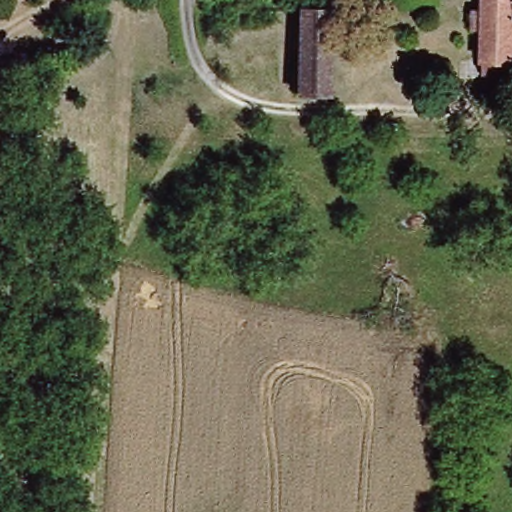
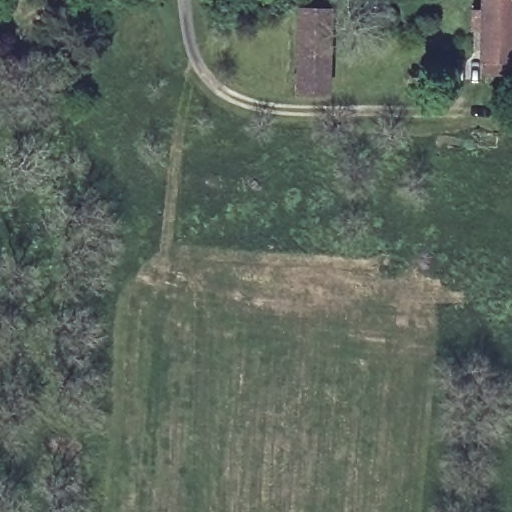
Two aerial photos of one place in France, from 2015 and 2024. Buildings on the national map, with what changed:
unchanged [(483,0),(512,0),(512,63),(482,63),(483,0)]
unchanged [(302,8),(339,8),(339,93),(301,93),(302,8)]
unchanged [(482,63),(512,63),(512,118),(480,116),(482,63)]

